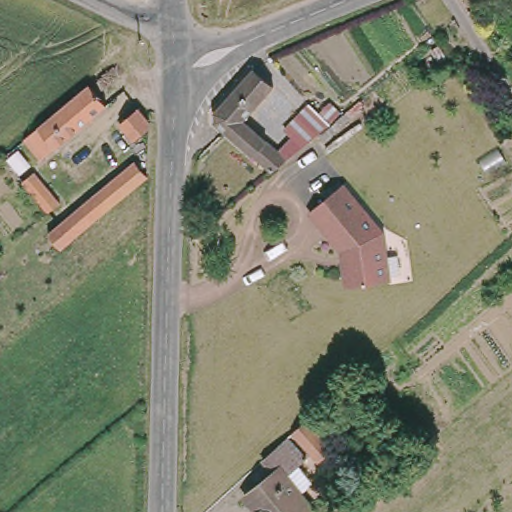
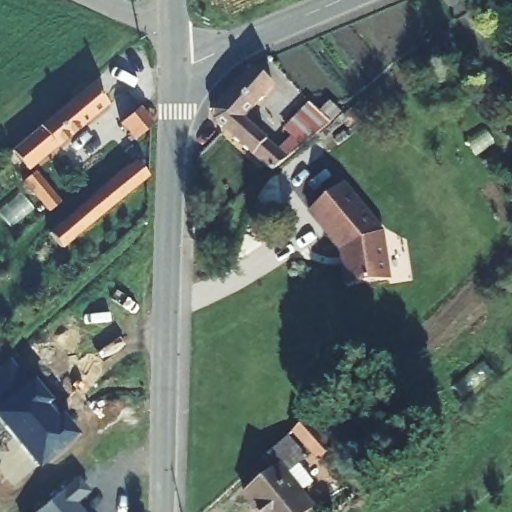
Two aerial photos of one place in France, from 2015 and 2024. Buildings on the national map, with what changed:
unchanged [(221,110),(276,71),(287,85),(253,109),(274,140),(308,116),(319,131),(262,173),(221,110)]
unchanged [(108,109),(43,161),(33,148),(18,160),(28,174),(20,179),(3,158),(90,86),(108,109)]
unchanged [(134,147),(119,128),(141,112),(152,126),(151,130),(151,135),(134,147)]
unchanged [(511,132),(512,131),(512,135),(511,132)]
unchanged [(143,170),(155,187),(61,249),(50,234),(58,228),(143,170)]
unchanged [(38,174),(63,207),(50,217),(33,195),(24,184),(38,174)]
unchanged [(348,182),(384,231),(388,270),(346,274),(343,248),(313,207),(348,182)]
new [(32,379),(51,402),(46,406),(56,418),(61,414),(78,436),(38,470),(0,425),(0,368),(8,362),(26,383),(32,379)]
unchanged [(321,417),(327,424),(316,434),(336,457),(321,470),(294,439),(321,417)]
unchanged [(271,482),(259,468),(288,444),(308,469),(300,476),(314,492),(301,504),(308,512),(252,512),(245,504),(271,482)]
new [(76,505),(82,512),(36,512),(76,478),(90,493),(76,505)]

